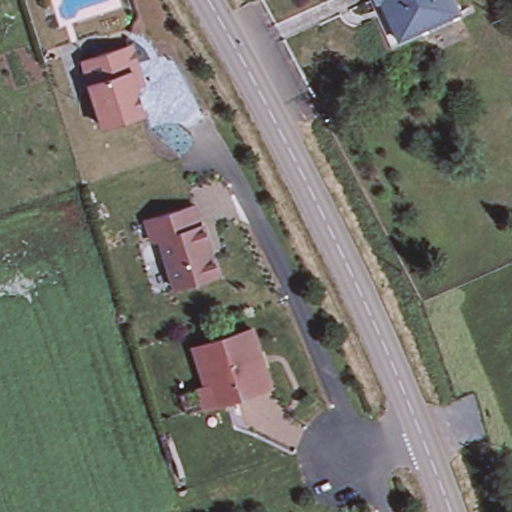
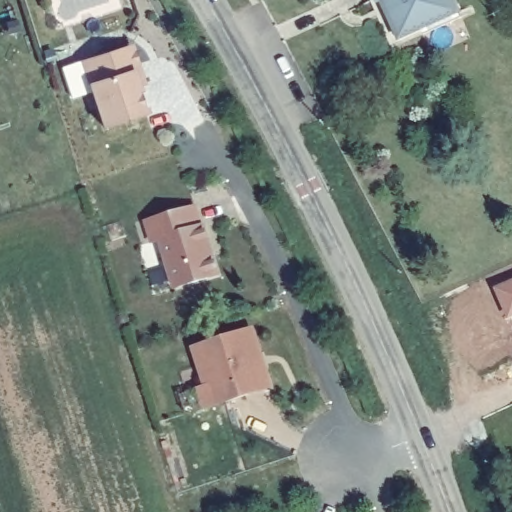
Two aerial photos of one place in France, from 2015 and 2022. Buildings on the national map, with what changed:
unchanged [(464,13),(430,28),(427,21),(406,30),(405,25),(393,30),(386,14),(395,10),(390,0),(458,0),(464,13)]
unchanged [(104,129),(81,62),(124,48),(133,51),(137,66),(143,86),(137,88),(146,115),(104,129)]
unchanged [(153,243),(146,223),(195,208),(201,228),(205,227),(210,245),(207,245),(211,258),(213,257),(219,277),(176,290),(161,241),(153,243)]
new [(512,317),(505,320),(492,287),(512,278),(512,317)]
unchanged [(252,331),(271,388),(207,408),(200,390),(208,387),(196,349),(252,331)]

